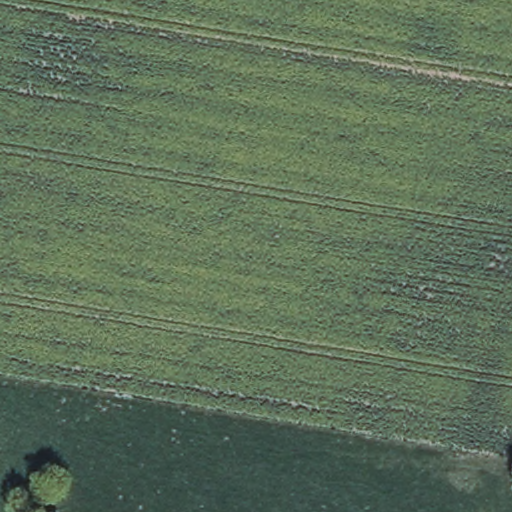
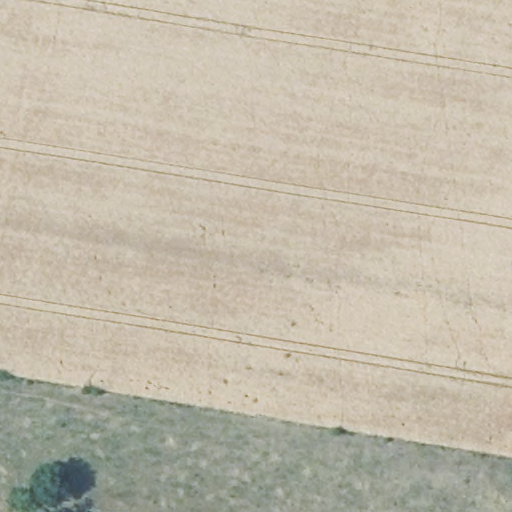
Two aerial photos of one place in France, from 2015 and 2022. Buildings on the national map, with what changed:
[]

